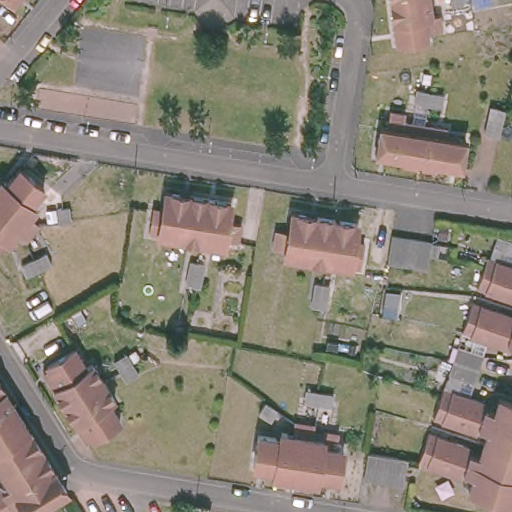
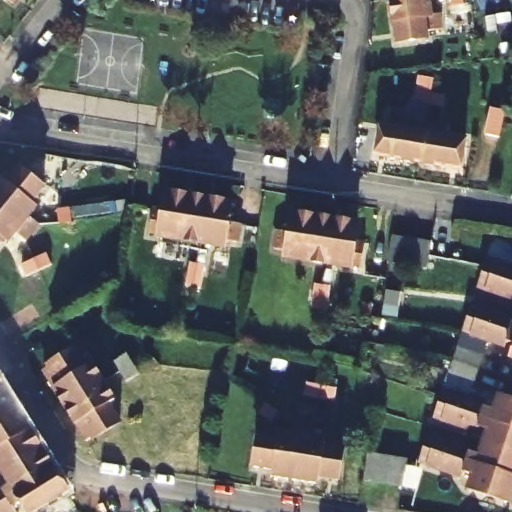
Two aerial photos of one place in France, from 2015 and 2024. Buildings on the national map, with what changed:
unchanged [(14,4),(10,0),(17,0),(14,4)]
unchanged [(387,0),(426,0),(428,11),(435,10),(437,25),(423,27),(424,34),(392,37),(387,0)]
unchanged [(420,92),(422,80),(435,82),(448,85),(446,97),(433,95),(420,92)]
unchanged [(499,139),(485,135),(491,109),(505,112),(499,139)]
unchanged [(376,156),(381,124),(387,125),(390,111),(405,114),(404,121),(425,125),(418,163),(376,156)]
unchanged [(446,135),(466,138),(461,170),(418,163),(425,125),(446,129),(446,135)]
unchanged [(6,180),(20,164),(44,184),(31,200),(36,204),(29,213),(38,221),(26,235),(19,229),(17,227),(9,237),(4,233),(0,238),(0,175),(6,180)]
unchanged [(192,214),(202,215),(207,216),(204,238),(197,236),(163,231),(163,229),(154,227),(158,203),(167,205),(170,186),(195,191),(192,214)]
unchanged [(207,216),(202,215),(192,214),(195,191),(204,192),(236,198),(233,217),(245,219),(242,237),(230,235),(229,242),(204,238),(207,216)]
unchanged [(68,202),(70,216),(58,217),(56,204),(68,202)]
unchanged [(313,234),(329,236),(329,242),(326,258),(318,257),(285,252),(286,245),(274,243),(277,225),(289,227),(293,207),(317,211),(313,234)]
unchanged [(329,242),(329,236),(313,234),(317,211),(325,213),(358,218),(355,237),(367,239),(364,257),(352,255),(351,262),(326,258),(329,242)]
unchanged [(427,268),(389,261),(391,248),(394,235),(432,241),(430,253),(427,268)]
unchanged [(27,271),(22,259),(35,254),(39,252),(47,249),(52,260),(40,265),(36,267),(27,271)]
unchanged [(483,273),(488,258),(496,261),(512,266),(512,283),(483,273)]
unchanged [(192,287),(185,285),(178,284),(182,261),(189,262),(196,263),(192,287)]
unchanged [(478,288),(483,273),(512,283),(512,299),(478,288)]
unchanged [(318,307),(311,305),(304,304),(308,281),(315,282),(322,283),(318,307)]
unchanged [(473,302),(512,315),(512,332),(468,318),(473,302)]
unchanged [(457,348),(483,357),(479,369),(475,382),(449,373),(453,360),(457,348)]
unchanged [(44,370),(75,350),(87,368),(92,365),(99,375),(79,387),(73,377),(71,377),(55,388),(44,370)]
unchanged [(128,382),(121,372),(115,361),(127,354),(133,364),(139,374),(128,382)]
unchanged [(9,389),(0,394),(0,375),(9,389)]
unchanged [(71,377),(73,377),(79,387),(99,375),(108,390),(89,402),(96,412),(77,424),(76,425),(53,388),(55,388),(71,377)]
unchanged [(19,404),(21,409),(0,422),(0,394),(9,389),(19,404)]
unchanged [(332,400),(331,407),(322,405),(318,404),(304,402),(307,389),(320,392),(333,394),(332,400)]
unchanged [(452,391),(484,401),(489,410),(494,411),(499,397),(512,401),(512,427),(440,403),(444,389),(452,391)]
unchanged [(115,400),(110,404),(120,422),(87,441),(77,424),(96,412),(89,402),(108,390),(115,400)]
unchanged [(278,410),(272,420),(260,412),(267,402),(278,410)]
unchanged [(512,427),(512,452),(484,443),(488,431),(482,428),(473,432),(434,420),(440,403),(512,427)]
unchanged [(21,409),(34,429),(0,450),(0,422),(21,409)]
unchanged [(254,466),(260,434),(280,438),(282,431),(294,433),(296,421),(314,424),(312,436),(311,437),(310,451),(308,459),(321,461),(318,477),(317,483),(274,476),(275,470),(254,466)]
unchanged [(34,429),(42,442),(47,450),(9,473),(2,462),(0,462),(0,450),(34,429)]
unchanged [(322,438),(324,431),(339,433),(336,447),(343,448),(338,481),(318,477),(321,461),(308,459),(310,451),(311,437),(312,436),(322,438)]
unchanged [(430,433),(470,446),(474,453),(480,456),(484,443),(512,452),(512,477),(425,448),(430,433)]
unchanged [(468,490),(473,476),(466,474),(460,476),(427,466),(420,463),(425,448),(512,477),(512,499),(511,504),(468,490)]
unchanged [(59,469),(0,506),(0,487),(1,486),(9,488),(16,484),(9,473),(47,450),(59,469)]
unchanged [(395,459),(408,461),(403,487),(390,485),(377,483),(364,481),(369,455),(382,457),(395,459)]
unchanged [(33,512),(27,501),(19,505),(18,512),(0,512),(0,506),(59,469),(65,479),(72,490),(36,512),(33,512)]

